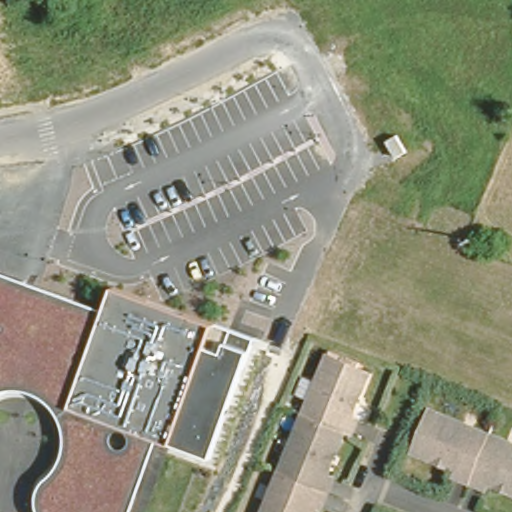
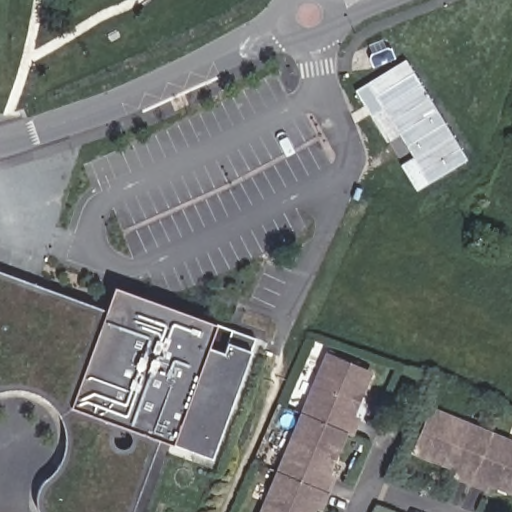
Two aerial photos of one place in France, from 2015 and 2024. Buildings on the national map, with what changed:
new [(409,61),(470,161),(418,192),(403,166),(414,160),(411,153),(401,159),(391,142),(389,144),(358,92),(409,61)]
unchanged [(211,458),(173,444),(159,440),(132,512),(39,512),(39,511),(37,503),(38,493),(42,485),(50,477),(59,468),(65,454),(66,442),(65,431),(62,420),(57,411),(48,401),(37,395),(23,390),(10,390),(0,392),(0,271),(107,310),(115,288),(216,326),(232,332),(255,339),(250,352),(211,458)]
unchanged [(354,416),(360,418),(353,433),(347,432),(329,474),(335,477),(323,506),(317,504),(313,512),(265,512),(330,354),(372,372),(354,416)]
unchanged [(512,489),(490,480),(488,486),(459,473),(461,468),(417,450),(434,408),(512,441),(512,489)]

